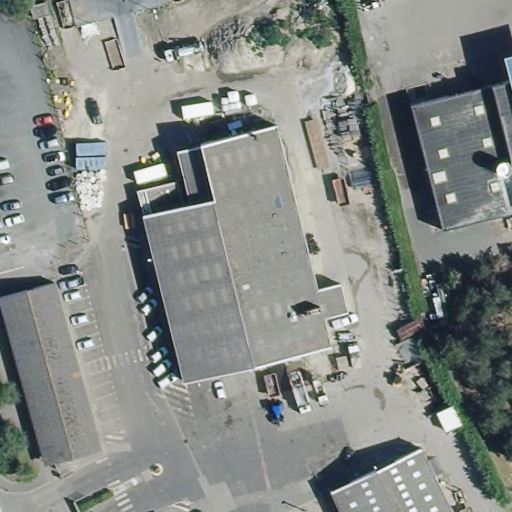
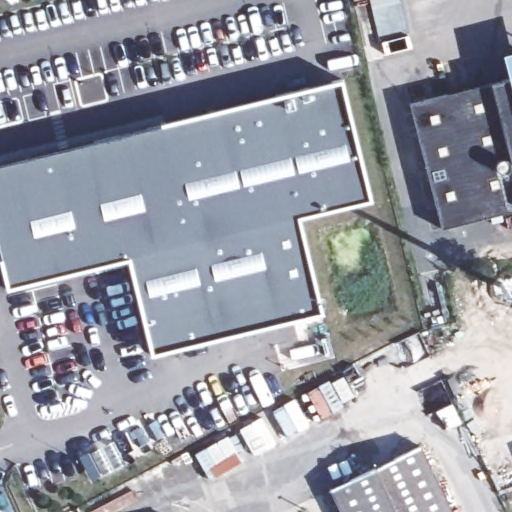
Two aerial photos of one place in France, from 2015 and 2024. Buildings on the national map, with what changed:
unchanged [(35,17),(39,28),(28,32),(25,21),(35,17)]
unchanged [(438,225),(407,99),(512,73),(512,207),(438,225)]
new [(0,252),(0,166),(341,82),(369,198),(296,216),(320,311),(153,352),(129,257),(8,286),(0,252)]
demolished [(276,119),(314,283),(336,278),(344,307),(321,312),(326,340),(181,375),(137,183),(176,174),(182,199),(188,198),(212,192),(199,136),(276,119)]
demolished [(89,427),(94,448),(59,457),(39,387),(30,389),(3,288),(54,274),(96,425),(89,427)]
unchanged [(343,512),(329,482),(419,440),(454,512),(343,512)]

